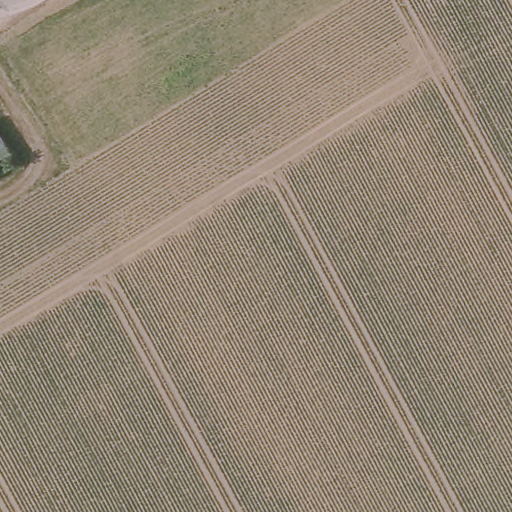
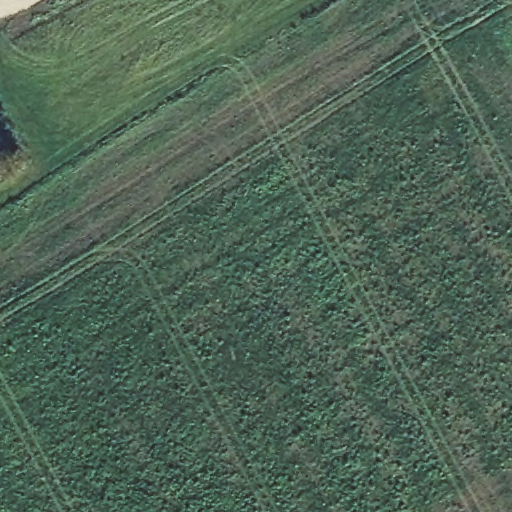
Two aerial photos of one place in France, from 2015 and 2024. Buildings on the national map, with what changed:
unchanged [(6,152),(0,156),(0,143),(6,152)]

